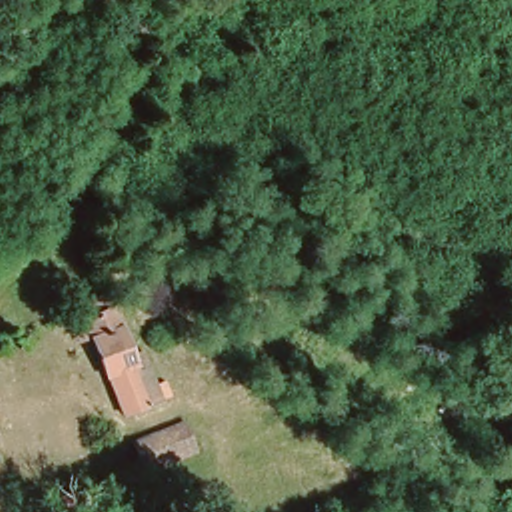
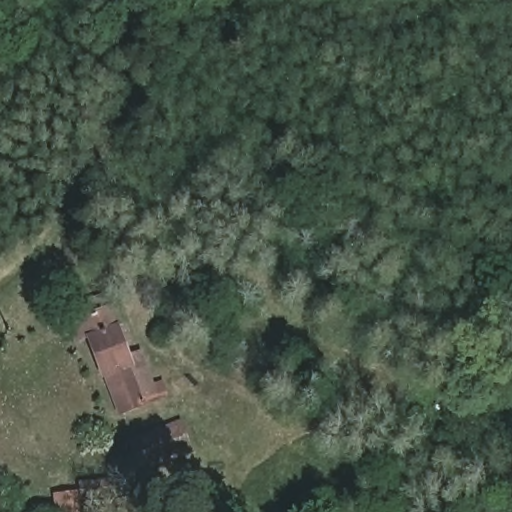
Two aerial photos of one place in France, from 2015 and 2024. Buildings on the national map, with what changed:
unchanged [(0,264),(0,247),(14,245),(17,262),(0,264)]
unchanged [(147,372),(158,403),(122,417),(91,340),(86,341),(80,326),(87,322),(118,310),(121,317),(116,320),(131,361),(141,356),(147,372)]
unchanged [(192,450),(183,458),(138,472),(127,440),(181,422),(192,450)]
unchanged [(125,475),(79,480),(78,468),(123,463),(125,475)]
unchanged [(52,480),(72,478),(74,487),(74,501),(54,503),(52,480)]
unchanged [(79,487),(114,483),(134,481),(135,495),(116,497),(81,500),(79,487)]

